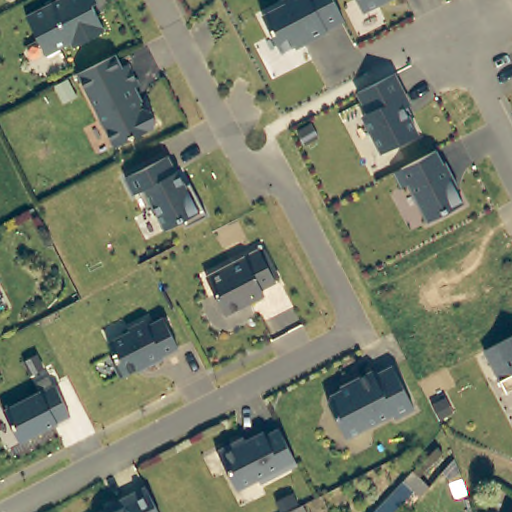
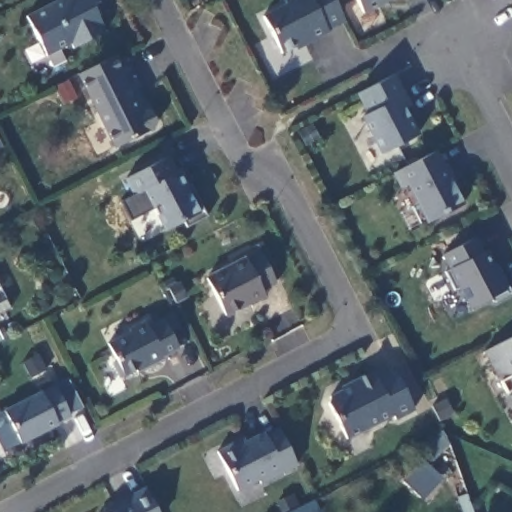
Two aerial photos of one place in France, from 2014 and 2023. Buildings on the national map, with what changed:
unchanged [(96,7),(110,34),(78,50),(76,46),(51,58),(31,19),(68,0),(100,0),(102,5),(96,7)]
unchanged [(293,46),(282,52),(262,15),(286,2),(285,0),(334,0),(344,21),(296,51),(293,46)]
unchanged [(358,0),(392,0),(365,14),(358,0)]
unchanged [(120,71),(127,67),(138,90),(131,93),(142,113),(143,112),(149,115),(154,125),(152,132),(113,151),(76,77),(98,66),(114,58),(120,71)]
unchanged [(374,160),(354,122),(361,119),(350,99),(354,97),(386,81),(402,112),(396,115),(410,141),(374,160)]
unchanged [(436,170),(438,169),(446,185),(444,186),(456,210),(421,228),(401,190),(394,193),(387,179),(387,178),(393,175),(429,157),(436,170)]
unchanged [(176,176),(183,190),(188,187),(194,200),(205,221),(184,232),(181,225),(163,234),(152,212),(146,215),(136,196),(132,198),(124,182),(166,161),(173,177),(176,176)]
new [(484,253),(487,252),(495,267),(498,265),(504,276),(512,291),(512,294),(494,303),(492,299),(472,309),(461,288),(456,292),(446,272),(452,270),(444,256),(476,239),(484,253)]
unchanged [(276,287),(262,295),(265,301),(225,320),(207,283),(260,256),(276,287)]
unchanged [(148,332),(163,324),(179,354),(163,362),(164,363),(137,377),(136,375),(120,382),(113,368),(116,366),(107,348),(130,337),(129,334),(145,326),(148,332)]
unchanged [(507,394),(486,352),(512,339),(512,392),(507,394)]
unchanged [(399,423),(396,418),(350,442),(331,407),(333,401),(362,386),(361,383),(380,373),(382,378),(395,371),(417,413),(399,423)]
unchanged [(70,422),(57,428),(58,429),(20,448),(3,415),(41,396),(41,397),(55,390),(70,422)]
unchanged [(299,472),(262,490),(260,486),(239,496),(220,457),(238,447),(240,452),(267,438),(268,442),(282,436),(299,472)]
unchanged [(387,512),(375,512),(405,480),(413,470),(431,485),(422,495),(411,486),(410,487),(387,512)]
unchanged [(149,491),(160,512),(114,512),(119,510),(116,504),(148,488),(149,491)]

